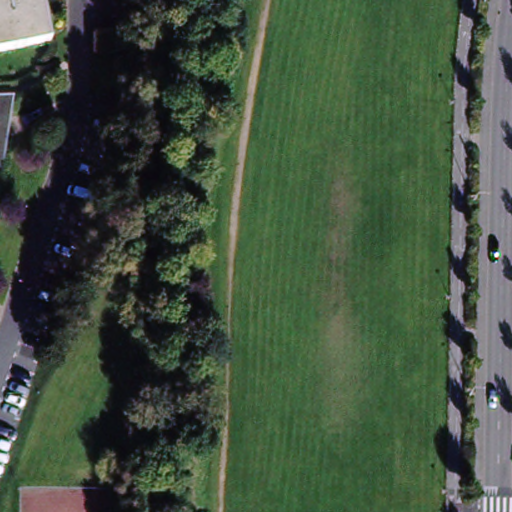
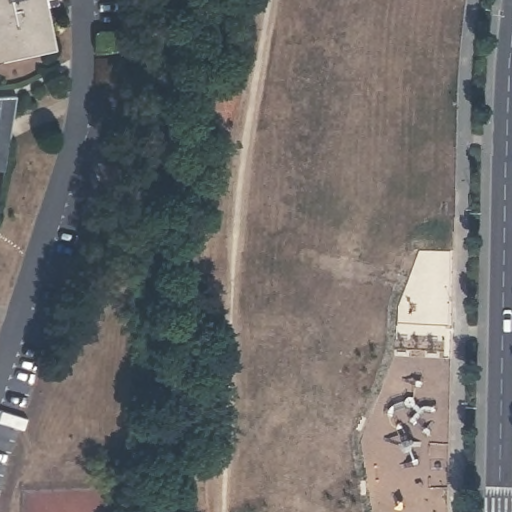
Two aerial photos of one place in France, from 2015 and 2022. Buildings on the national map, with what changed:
unchanged [(56,31),(0,45),(0,0),(47,0),(56,31)]
unchanged [(125,27),(125,46),(106,47),(105,29),(125,27)]
unchanged [(6,102),(4,117),(0,142),(0,103),(6,102)]
unchanged [(20,129),(17,137),(11,162),(0,160),(0,142),(4,117),(6,102),(11,102),(26,102),(20,129)]
unchanged [(2,201),(0,207),(0,201),(2,201)]

